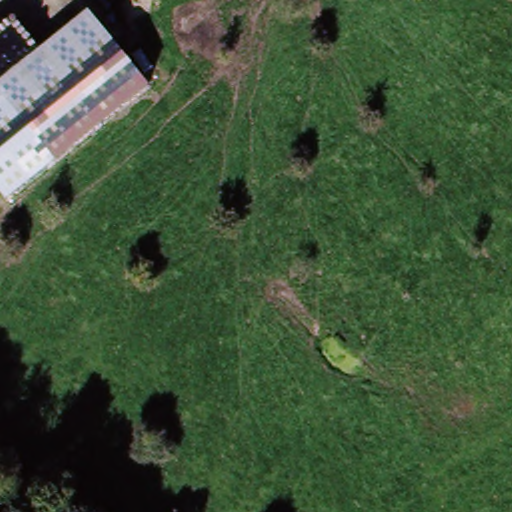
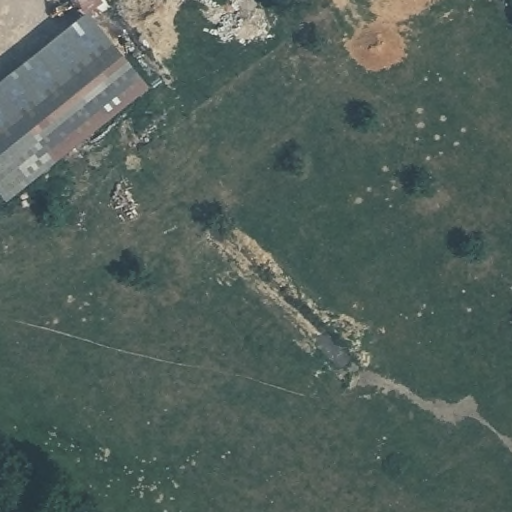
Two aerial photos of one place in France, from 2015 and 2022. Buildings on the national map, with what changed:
unchanged [(151,84),(7,201),(0,192),(0,82),(88,11),(151,84)]

